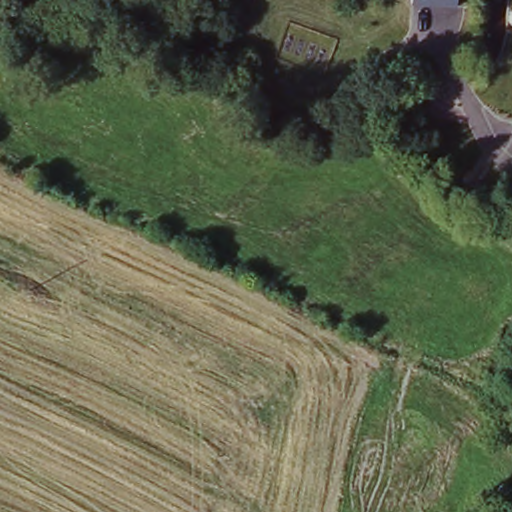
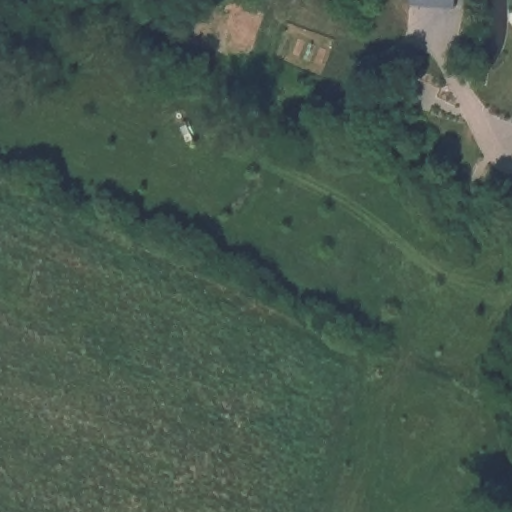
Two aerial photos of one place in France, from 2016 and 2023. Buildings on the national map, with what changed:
unchanged [(460,4),(414,1),(414,0),(460,0),(460,4)]
unchanged [(455,102),(426,94),(432,81),(458,88),(455,102)]

